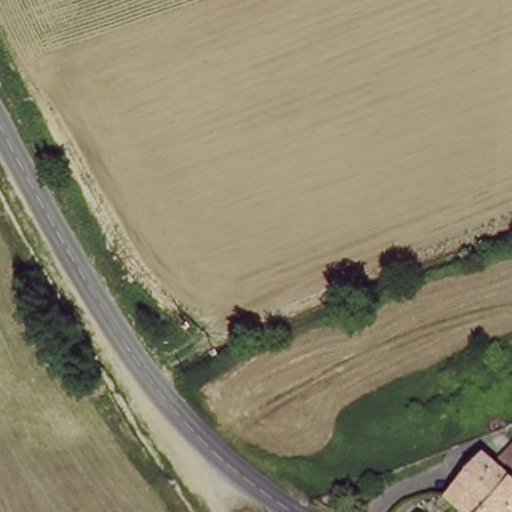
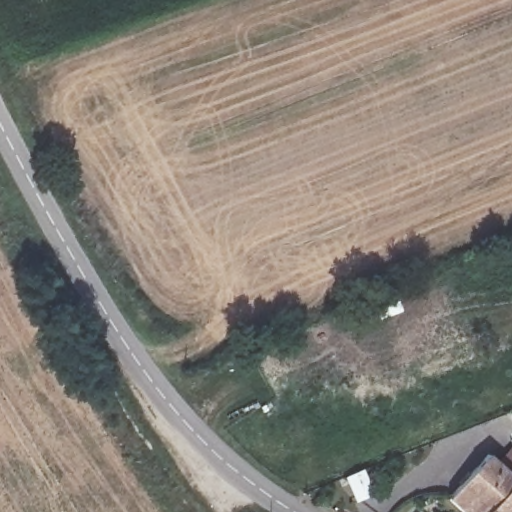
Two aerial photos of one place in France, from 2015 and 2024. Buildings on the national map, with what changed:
unchanged [(505,457),(512,466),(512,512),(469,512),(455,492),(467,484),(505,457)]

